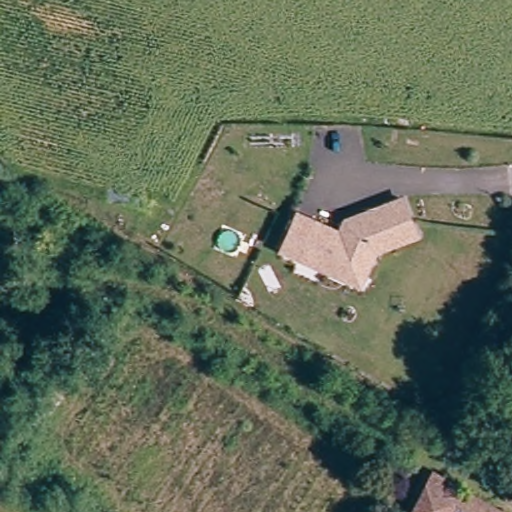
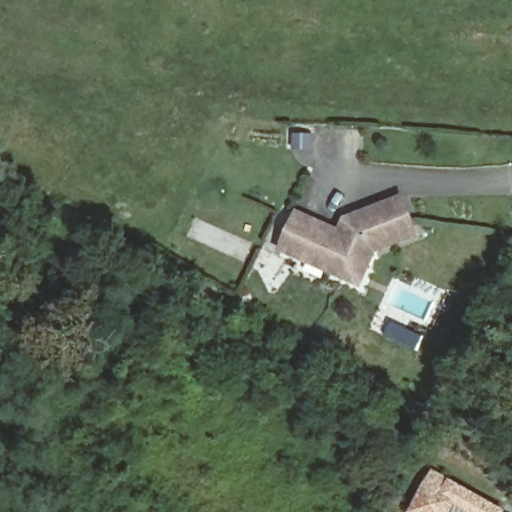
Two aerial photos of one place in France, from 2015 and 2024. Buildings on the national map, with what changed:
unchanged [(343,280),(280,252),(296,217),(340,236),(345,223),(403,203),(416,239),(375,254),(366,272),(358,288),(343,280)]
unchanged [(496,510),(496,512),(469,512),(450,503),(445,512),(413,512),(418,504),(434,478),(496,510)]

